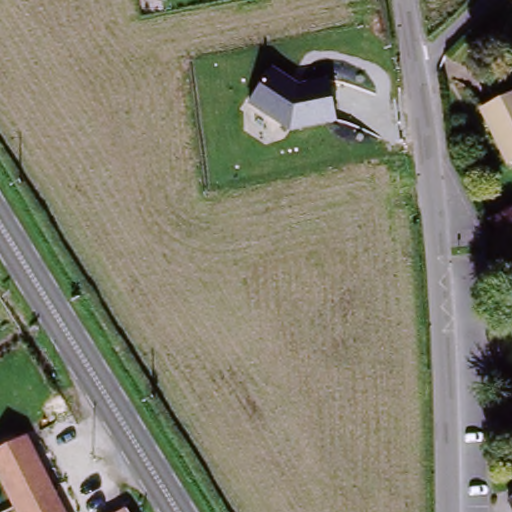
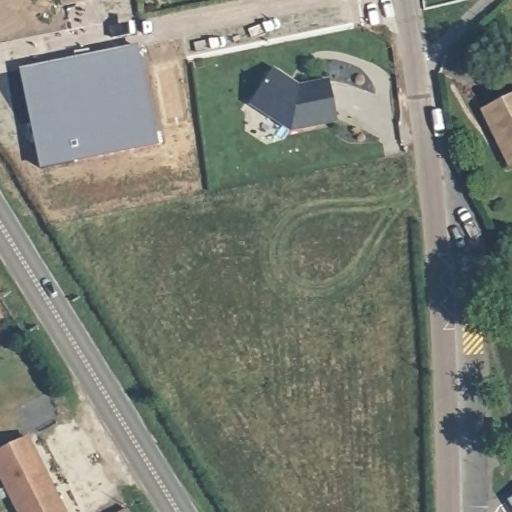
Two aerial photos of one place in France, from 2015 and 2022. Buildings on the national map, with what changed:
new [(138,39),(165,180),(47,204),(19,63),(138,39)]
unchanged [(297,88),(328,81),(337,124),(292,135),(247,104),(272,69),(297,88)]
unchanged [(486,112),(512,97),(512,164),(486,112)]
unchanged [(0,484),(0,449),(26,436),(65,512),(14,512),(0,484)]

